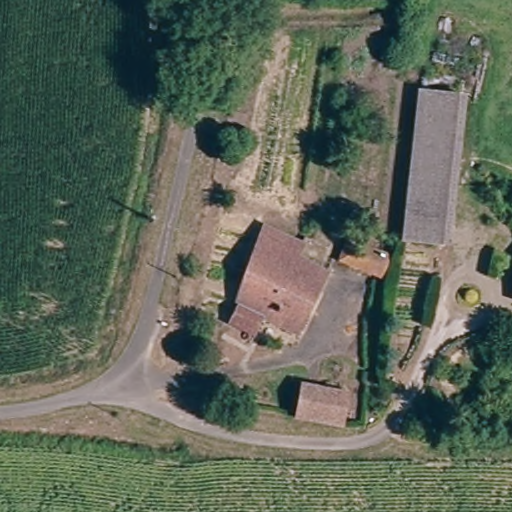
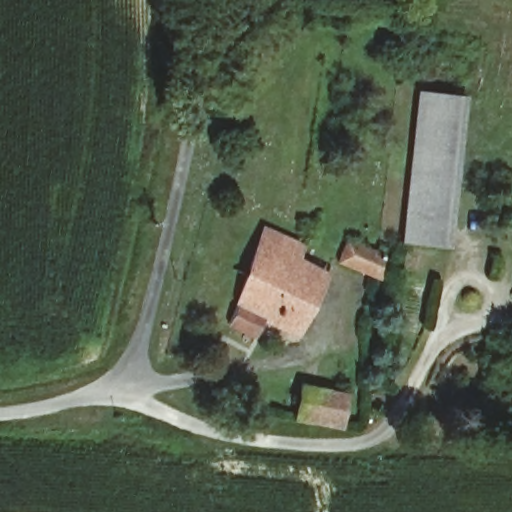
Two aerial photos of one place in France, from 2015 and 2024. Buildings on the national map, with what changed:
unchanged [(460,97),(446,242),(406,235),(419,91),(460,97)]
unchanged [(297,333),(261,323),(255,340),(231,335),(257,229),(288,241),(292,232),(330,247),(297,333)]
unchanged [(390,237),(378,275),(374,274),(333,262),(337,251),(340,239),(373,244),(376,232),(390,237)]
unchanged [(302,395),(339,397),(341,415),(301,412),(302,395)]

